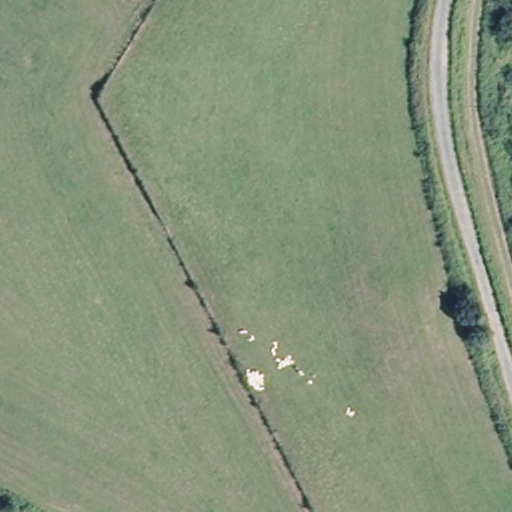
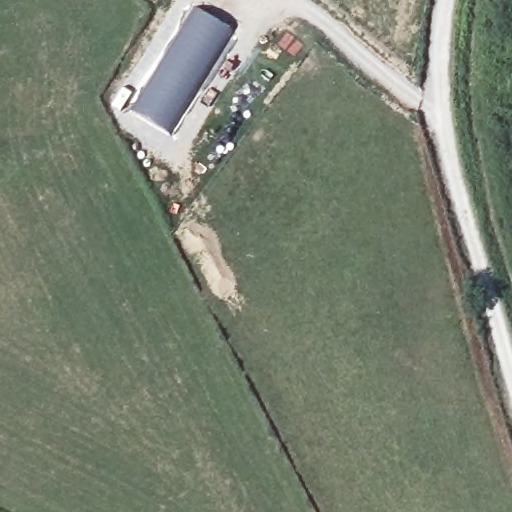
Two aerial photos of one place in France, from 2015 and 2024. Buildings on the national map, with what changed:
new [(167,45),(194,5),(235,30),(198,94),(170,135),(129,109),(167,45)]

